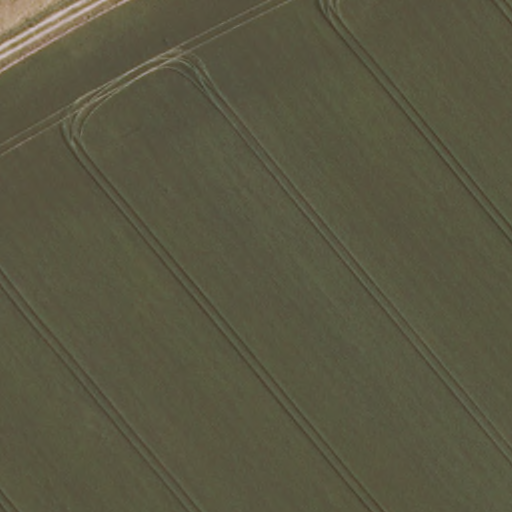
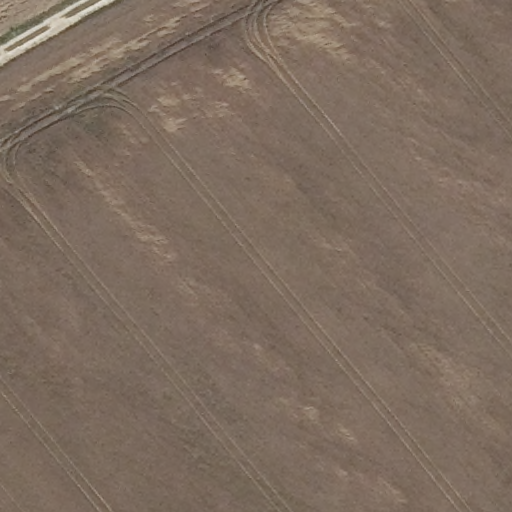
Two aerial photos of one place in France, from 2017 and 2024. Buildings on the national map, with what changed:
[]

